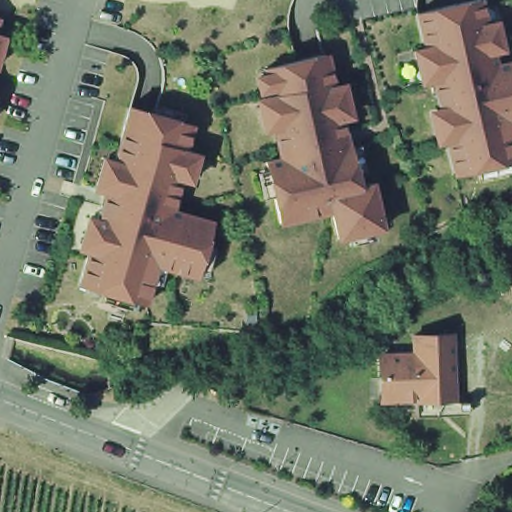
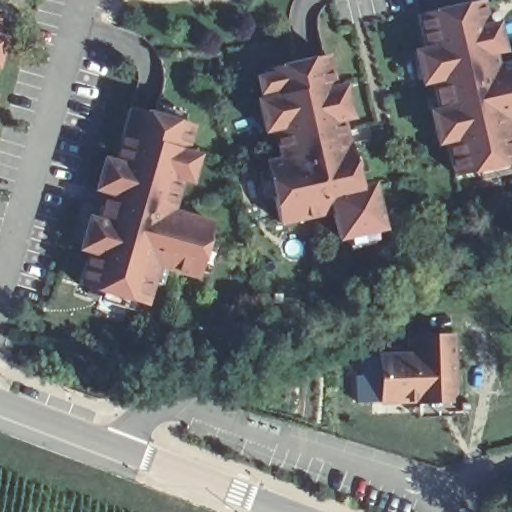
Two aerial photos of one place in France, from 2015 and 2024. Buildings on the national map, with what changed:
unchanged [(511,171),(480,177),(477,168),(450,172),(446,141),(435,144),(428,107),(437,104),(432,82),(420,86),(411,46),(423,42),(416,12),(433,6),(453,0),(483,0),(487,19),(498,16),(505,50),(493,52),(497,66),(512,62),(512,160),(509,160),(511,171)]
unchanged [(7,35),(0,57),(0,33),(7,35)]
unchanged [(271,195),(263,196),(258,169),(267,169),(264,162),(280,159),(273,131),(261,133),(255,99),(267,96),(266,92),(257,93),(254,75),(265,72),(264,66),(278,64),(279,61),(317,51),(319,57),(328,53),(334,83),(345,81),(354,117),(342,120),(351,153),(359,149),(365,174),(358,178),(359,185),(373,180),(384,227),(372,231),(373,240),(348,246),(347,237),(335,239),(330,213),(279,226),(271,195)]
unchanged [(132,300),(128,308),(99,298),(102,290),(79,282),(87,252),(76,249),(85,212),(98,216),(104,192),(92,188),(101,154),(116,157),(127,106),(146,109),(177,117),(193,124),(187,147),(201,152),(192,184),(179,180),(173,208),(211,220),(209,235),(215,245),(208,271),(197,277),(164,268),(159,287),(150,284),(147,303),(132,300)]
unchanged [(374,359),(408,358),(408,340),(446,339),(447,403),(375,404),(374,359)]

